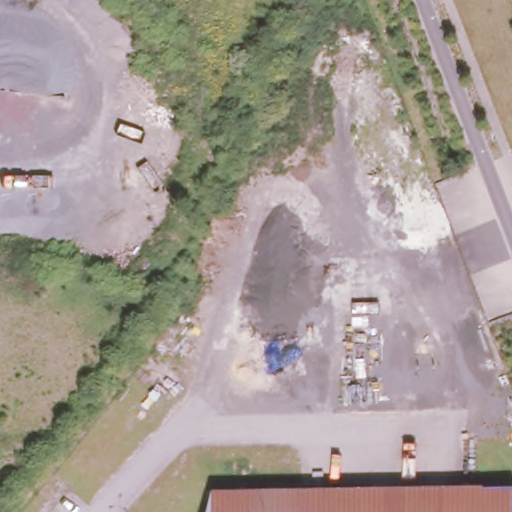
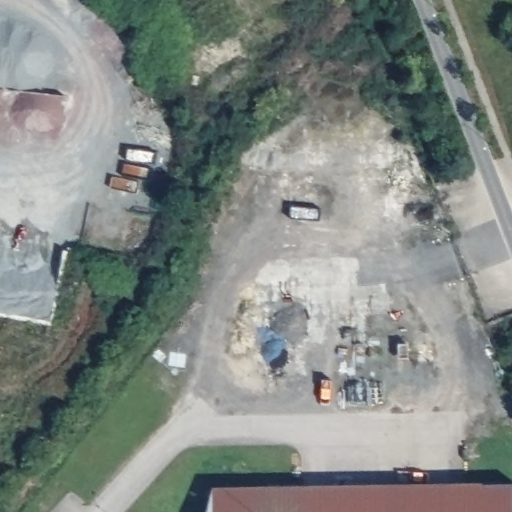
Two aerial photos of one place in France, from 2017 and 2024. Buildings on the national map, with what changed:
unchanged [(512,483),(512,512),(211,512),(211,487),(512,483)]

